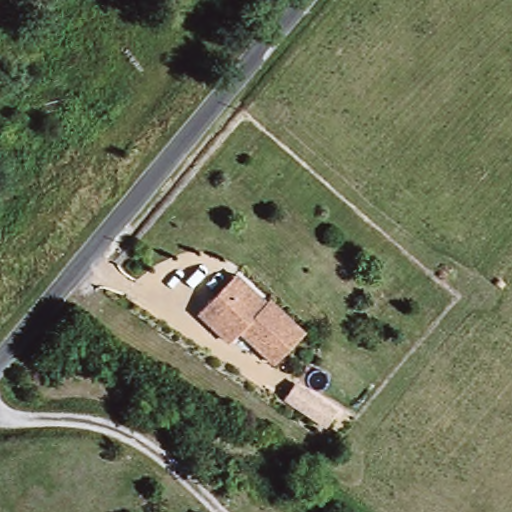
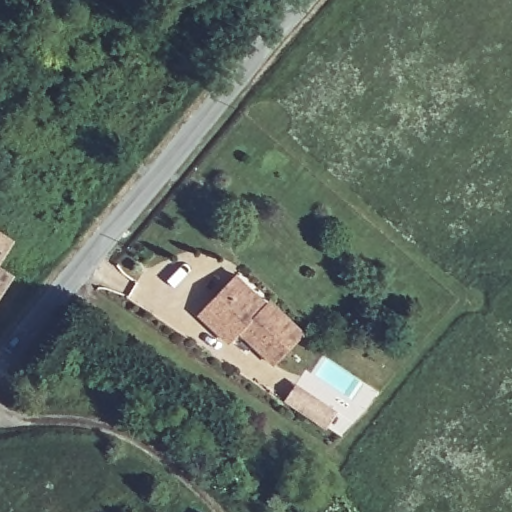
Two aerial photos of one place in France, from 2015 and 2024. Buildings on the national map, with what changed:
new [(0,301),(0,266),(17,276),(0,301)]
unchanged [(274,360),(239,328),(230,338),(198,308),(212,294),(235,269),(243,277),(267,300),(270,296),(277,302),(303,327),(274,360)]
unchanged [(287,396),(298,380),(337,410),(326,425),(287,396)]
unchanged [(207,510),(209,512),(204,512),(207,510)]

